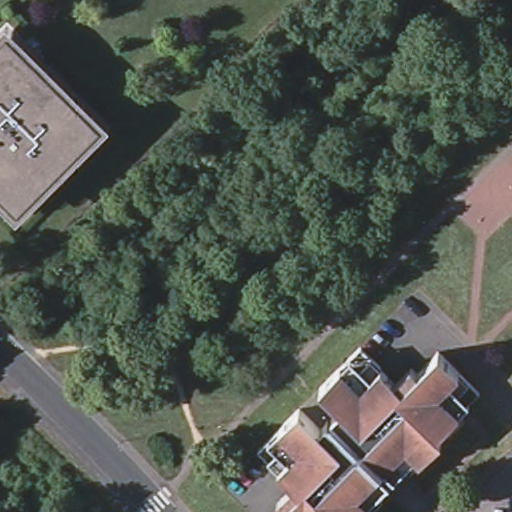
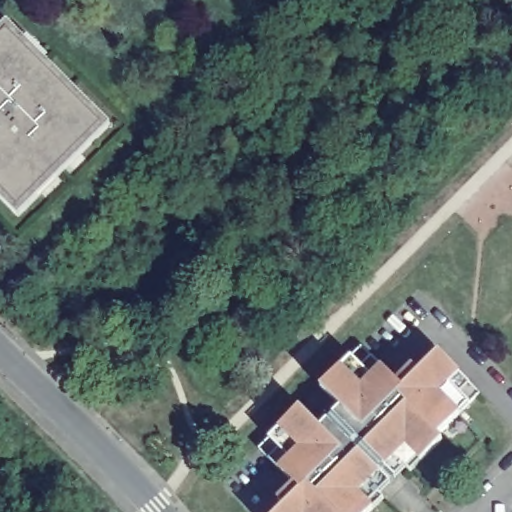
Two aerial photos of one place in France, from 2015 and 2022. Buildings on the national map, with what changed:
unchanged [(20,212),(0,192),(0,45),(11,34),(104,129),(20,212)]
unchanged [(279,496),(294,481),(261,447),(302,407),(321,426),(342,406),(322,385),(364,345),(396,378),(412,362),(419,370),(439,350),(479,391),(439,431),(444,436),(411,468),(408,465),(380,492),(384,496),(369,512),(277,512),(286,503),(279,496)]

